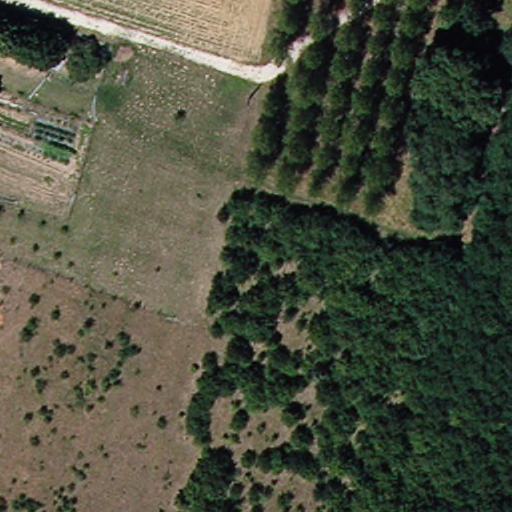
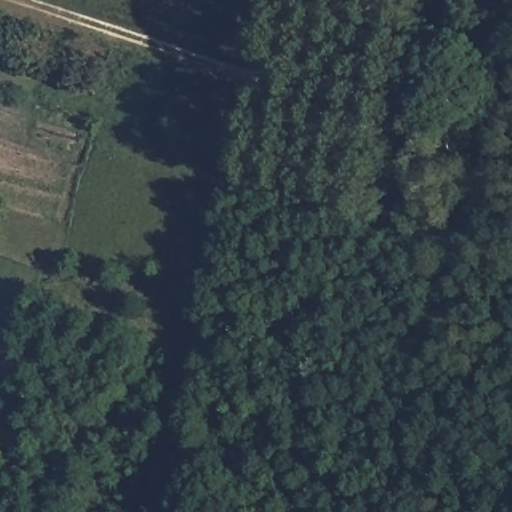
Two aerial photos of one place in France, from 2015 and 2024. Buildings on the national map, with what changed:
unchanged [(438,212),(424,207),(428,195),(442,199),(438,212)]

